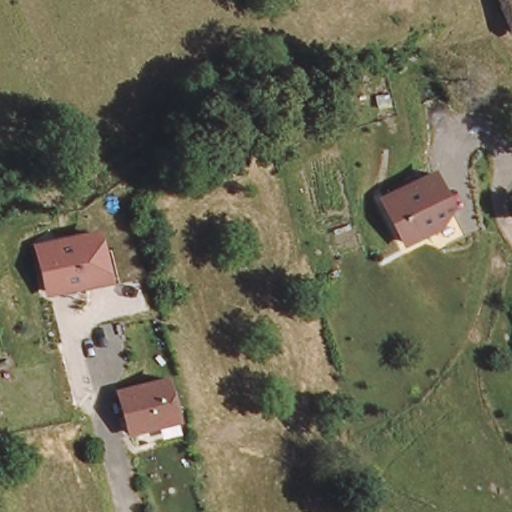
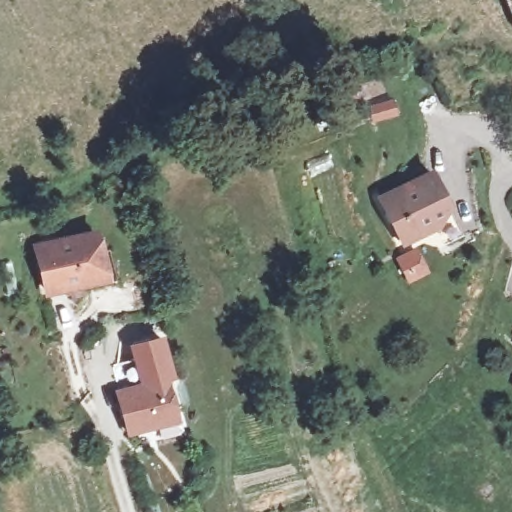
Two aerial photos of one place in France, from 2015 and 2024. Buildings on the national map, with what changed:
demolished [(507,0),(512,0),(512,16),(507,0)]
unchanged [(441,237),(431,219),(404,234),(381,191),(429,164),(453,207),(463,226),(441,237)]
unchanged [(47,298),(33,244),(98,226),(112,280),(47,298)]
new [(128,343),(163,335),(174,376),(167,378),(166,374),(139,381),(128,343)]
unchanged [(180,420),(126,437),(113,388),(166,374),(180,420)]

